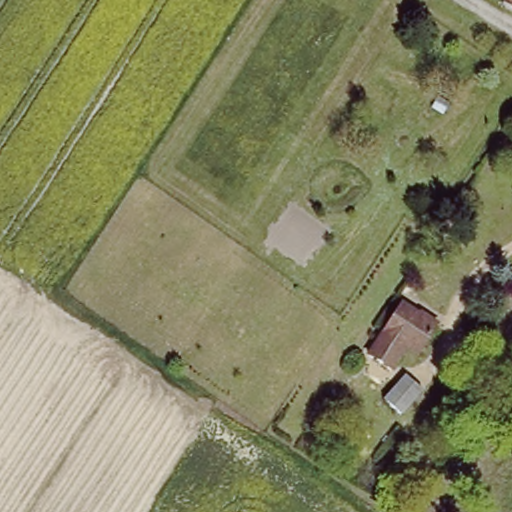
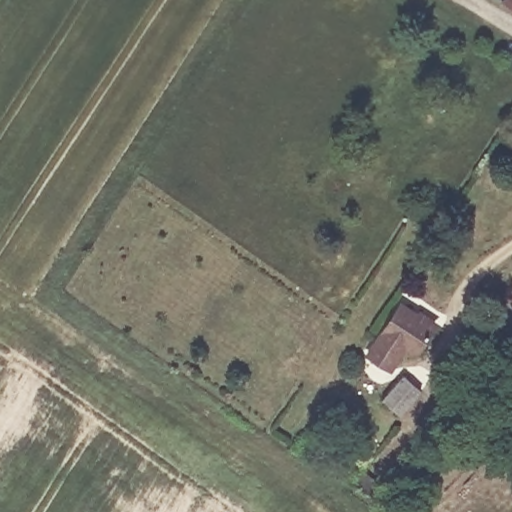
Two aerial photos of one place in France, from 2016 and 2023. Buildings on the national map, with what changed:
unchanged [(504,3),(508,0),(512,0),(512,7),(504,3)]
unchanged [(438,322),(421,349),(407,340),(388,329),(404,303),(438,322)]
unchanged [(407,340),(393,372),(364,356),(381,325),(388,329),(407,340)]
unchanged [(412,394),(390,418),(376,404),(397,381),(412,394)]

